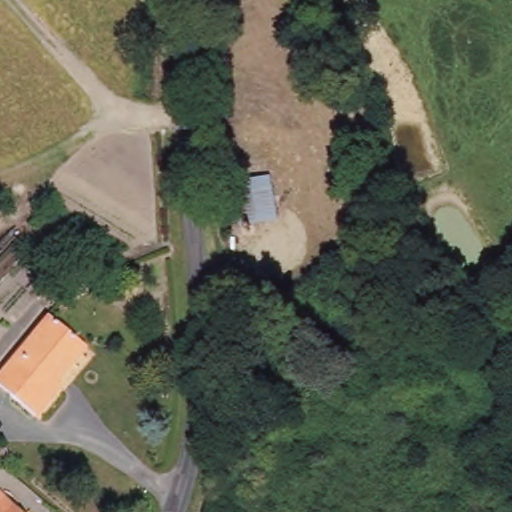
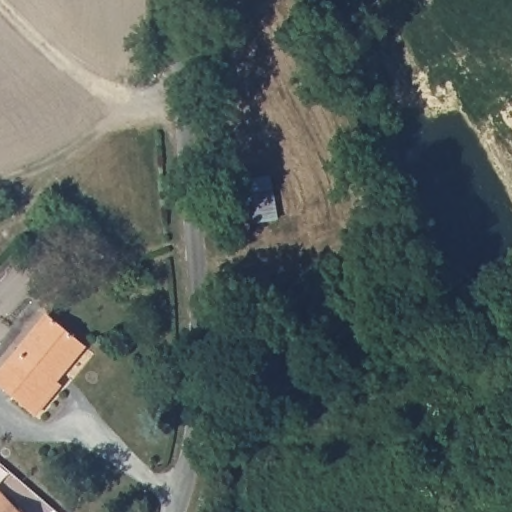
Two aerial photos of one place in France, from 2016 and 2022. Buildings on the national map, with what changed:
unchanged [(55,380),(59,384),(34,414),(0,386),(0,371),(44,317),(83,347),(55,380)]
unchanged [(0,512),(0,502),(4,498),(19,512),(0,512)]

